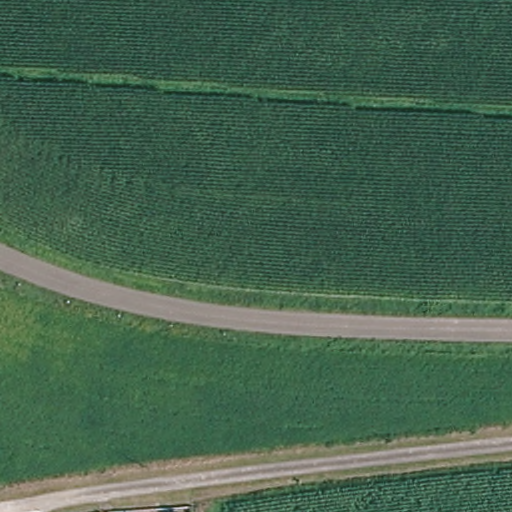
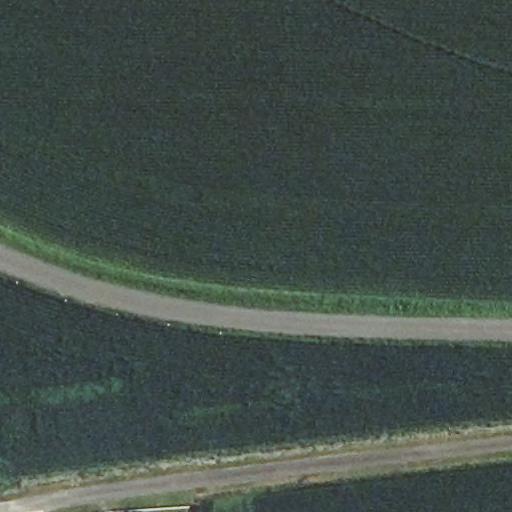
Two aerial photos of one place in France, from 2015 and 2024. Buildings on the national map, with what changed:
[]

